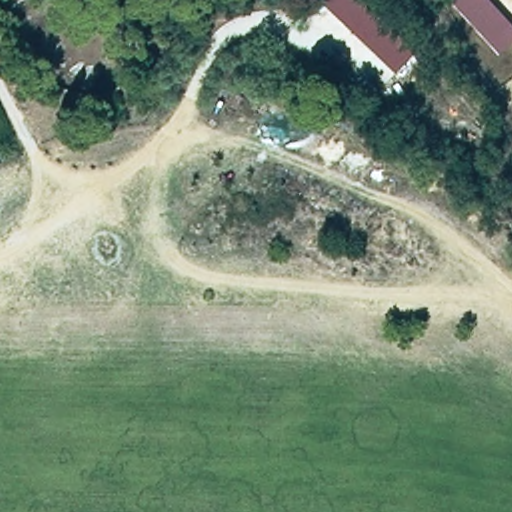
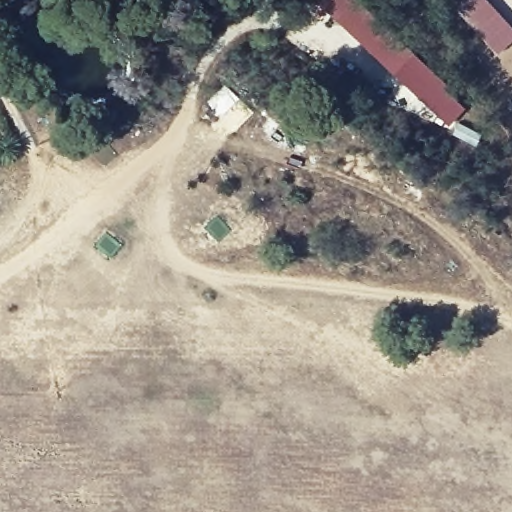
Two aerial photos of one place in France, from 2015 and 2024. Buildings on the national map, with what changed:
unchanged [(390,73),(318,0),(359,0),(411,51),(390,73)]
unchanged [(496,53),(444,0),(487,0),(512,27),(512,36),(496,53)]
new [(411,51),(445,82),(443,84),(466,107),(450,125),(392,71),(411,51)]

